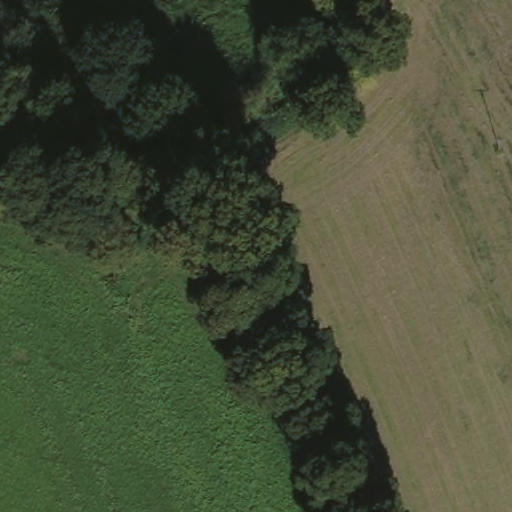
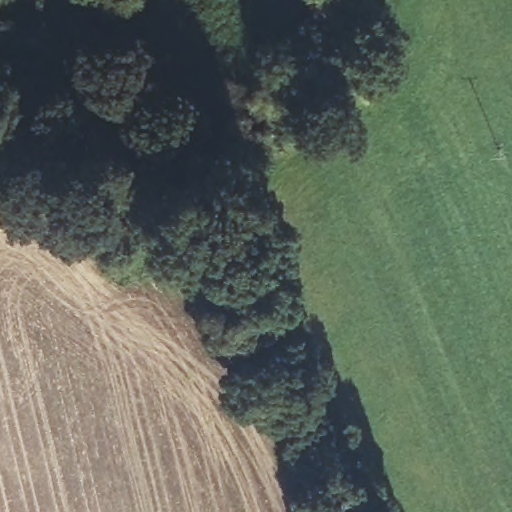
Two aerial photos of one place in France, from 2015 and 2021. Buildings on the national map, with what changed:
[]

